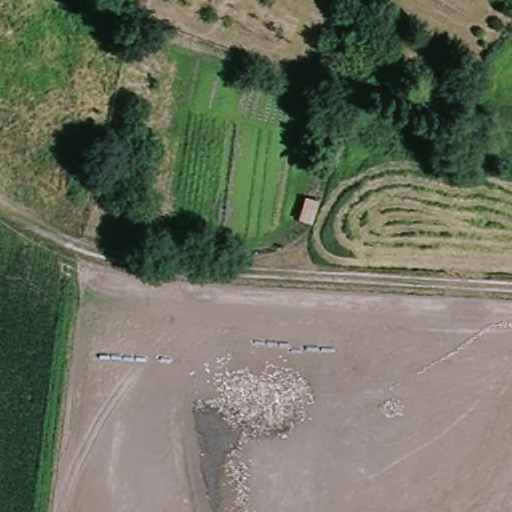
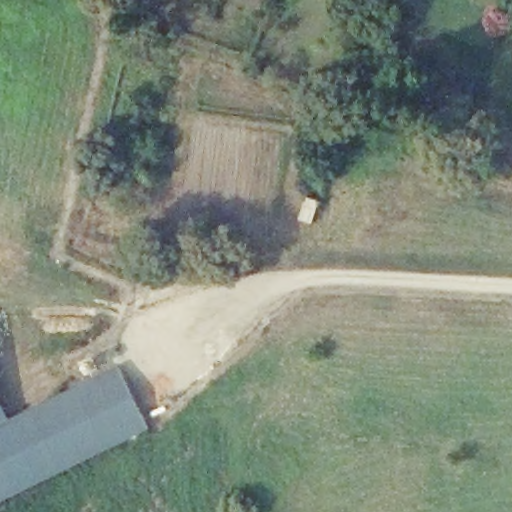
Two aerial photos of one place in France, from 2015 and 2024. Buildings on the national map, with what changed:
new [(0,501),(0,424),(118,366),(149,428),(0,501)]
new [(0,424),(0,407),(7,421),(0,424)]

